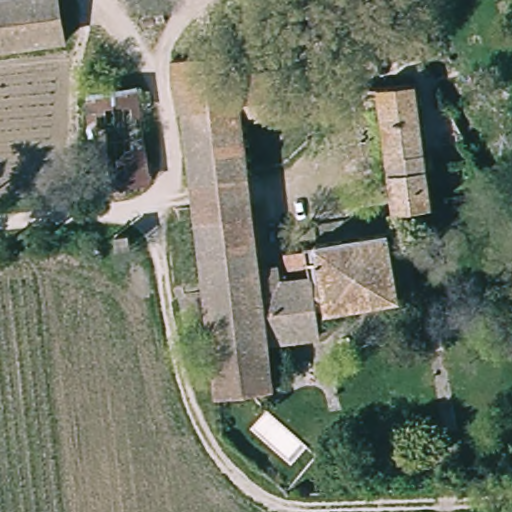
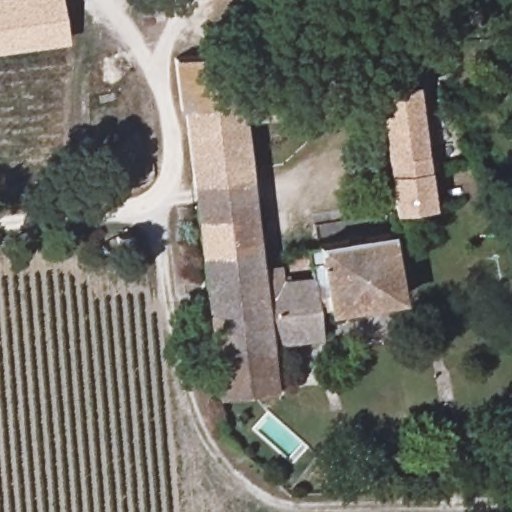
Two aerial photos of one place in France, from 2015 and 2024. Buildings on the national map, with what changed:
unchanged [(58,39),(0,47),(0,0),(53,0),(58,39)]
unchanged [(240,20),(241,35),(223,35),(223,20),(240,20)]
unchanged [(256,117),(260,157),(246,160),(258,269),(276,267),(278,282),(304,280),(301,245),(386,232),(396,298),(314,310),(316,335),(266,341),(273,392),(215,397),(200,284),(181,286),(170,207),(192,205),(182,112),(178,112),(172,61),(236,54),(238,72),(275,69),(295,67),(297,92),(276,94),(278,116),(256,117)]
unchanged [(416,86),(435,211),(395,217),(374,90),(416,86)]
unchanged [(136,229),(138,244),(123,245),(121,230),(136,229)]

